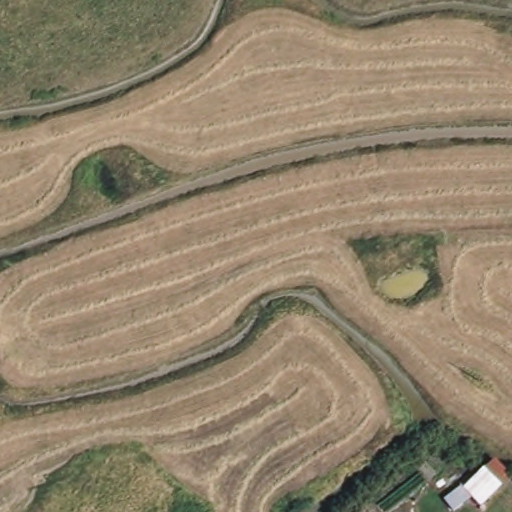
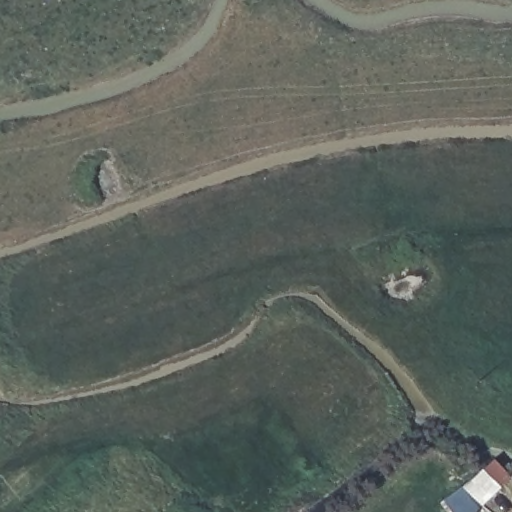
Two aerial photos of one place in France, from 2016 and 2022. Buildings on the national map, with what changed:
unchanged [(510,480),(472,512),(461,512),(450,497),(492,457),(510,480)]

